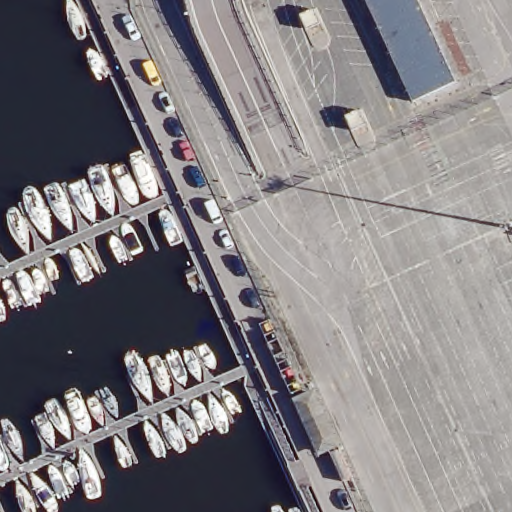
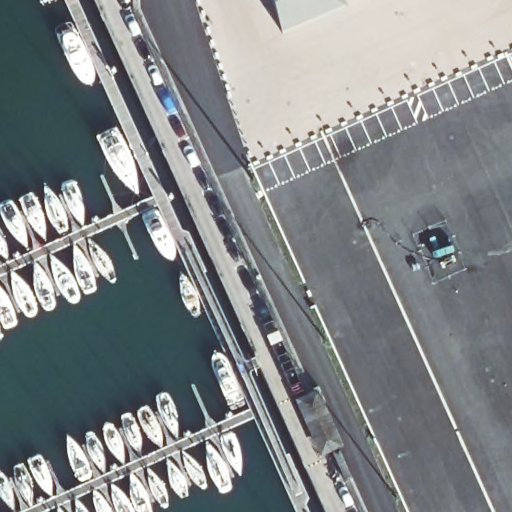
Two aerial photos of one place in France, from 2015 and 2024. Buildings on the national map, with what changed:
new [(274,0),(393,0),(291,41),(274,0)]
demolished [(418,0),(453,79),(413,98),(369,0),(418,0)]
unchanged [(344,447),(319,457),(294,399),(317,388),(344,447)]

